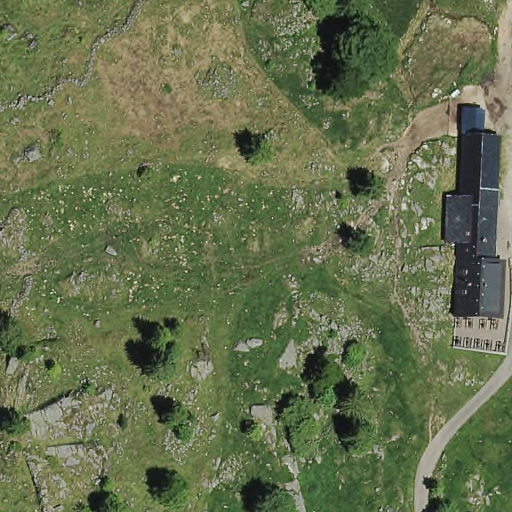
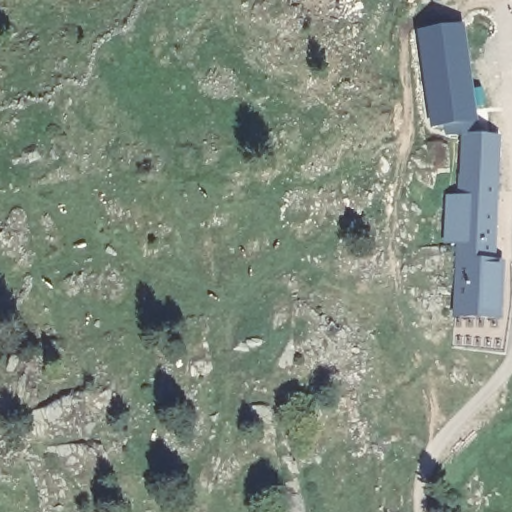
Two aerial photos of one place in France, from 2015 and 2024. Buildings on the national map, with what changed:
new [(432,127),(417,32),(465,26),(478,124),(432,127)]
unchanged [(503,300),(455,298),(459,253),(440,252),(445,199),(463,199),(467,141),(507,142),(500,215),(498,236),(495,270),(506,272),(503,300)]
unchanged [(503,300),(500,330),(454,323),(455,298),(503,300)]

